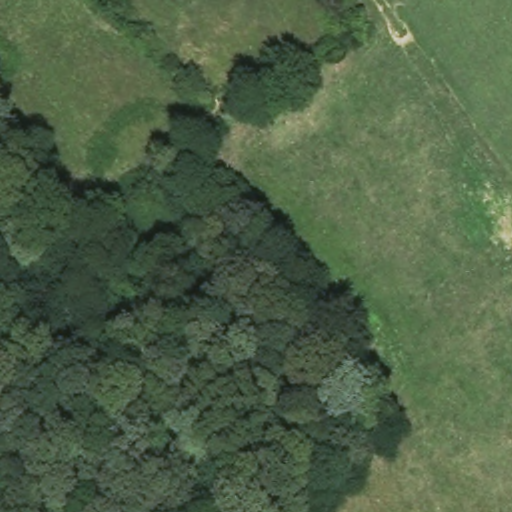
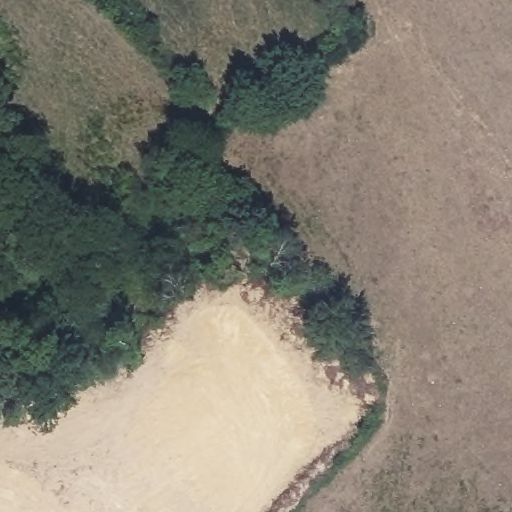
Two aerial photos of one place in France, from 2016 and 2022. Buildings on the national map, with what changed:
[]

